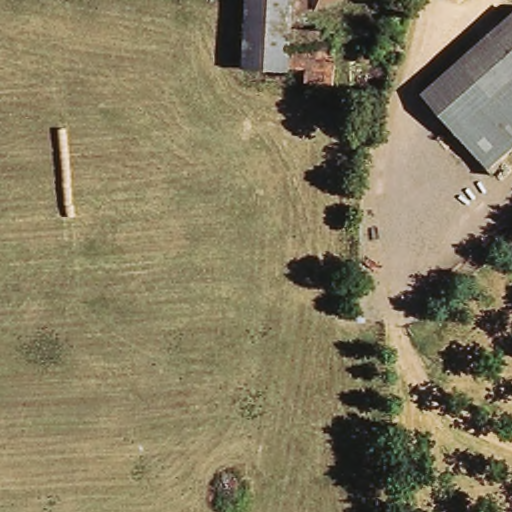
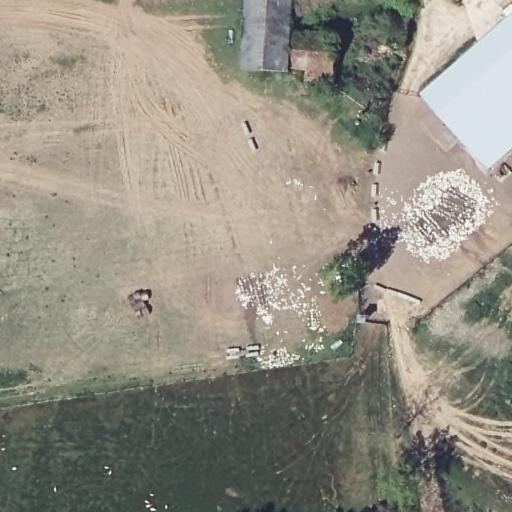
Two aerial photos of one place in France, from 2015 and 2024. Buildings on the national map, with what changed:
unchanged [(245,62),(247,0),(335,0),(295,17),(293,25),(341,31),(335,85),(305,81),(305,66),(292,65),(291,69),(245,62)]
unchanged [(434,104),(420,89),(509,7),(512,10),(512,147),(491,167),(434,104)]
unchanged [(360,60),(362,47),(366,47),(368,31),(392,31),(393,21),(410,17),(405,50),(397,49),(396,62),(360,60)]

